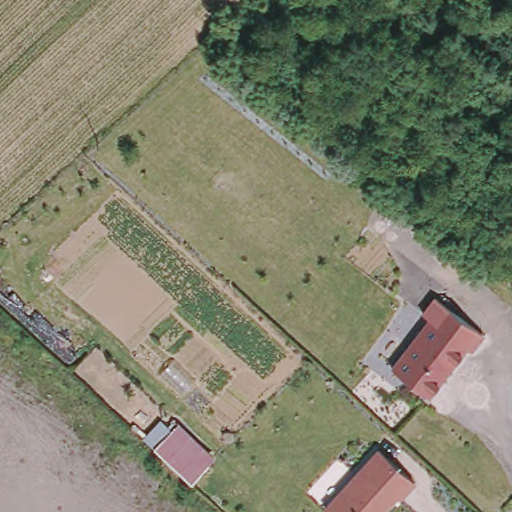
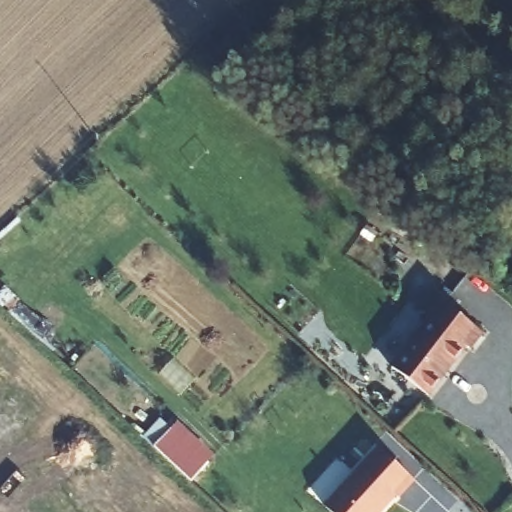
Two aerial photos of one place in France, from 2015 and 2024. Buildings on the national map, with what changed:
unchanged [(429,317),(423,312),(436,295),(482,333),(470,352),(465,348),(429,396),(391,365),(429,317)]
unchanged [(155,448),(143,436),(159,417),(172,427),(176,421),(213,457),(191,483),(155,448)]
unchanged [(403,497),(399,494),(383,512),(330,512),(324,506),(376,447),(417,480),(403,497)]

